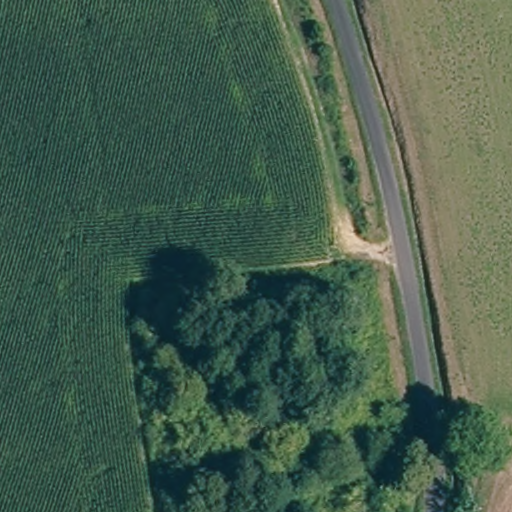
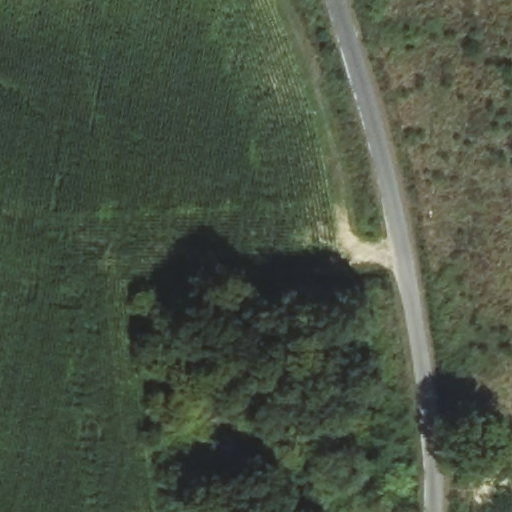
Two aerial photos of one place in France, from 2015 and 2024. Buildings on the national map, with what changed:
unchanged [(332,449),(373,454),(365,512),(324,512),(331,457),(332,449)]

